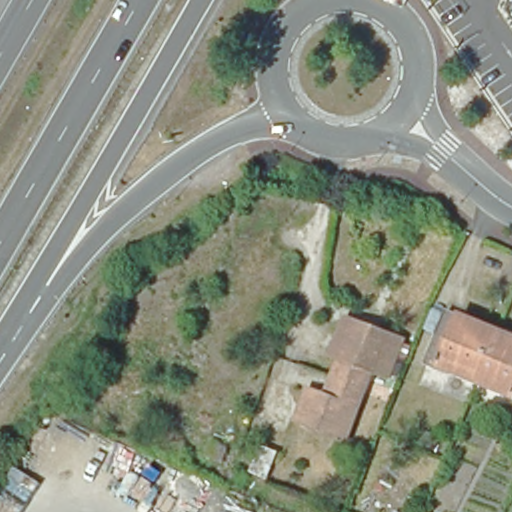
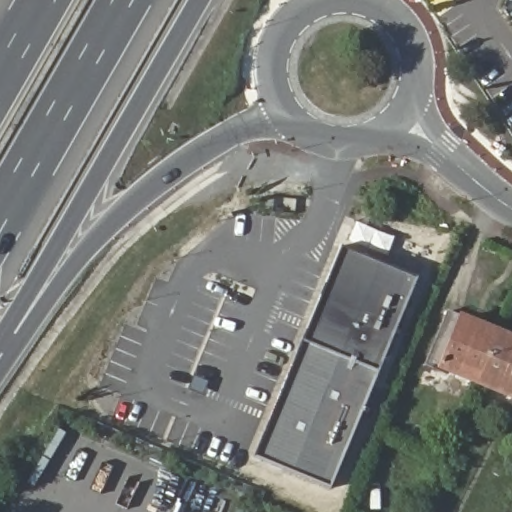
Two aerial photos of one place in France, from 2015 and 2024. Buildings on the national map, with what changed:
new [(331,487),(255,456),(304,340),(342,247),(417,279),(379,371),(331,487)]
unchanged [(450,311),(467,318),(481,324),(502,332),(486,369),(481,381),(431,361),(450,311)]
demolished [(348,322),(403,346),(390,378),(334,355),(348,322)]
unchanged [(512,335),(512,393),(481,381),(486,369),(502,332),(512,335)]
demolished [(374,379),(350,443),(298,423),(310,391),(326,397),(338,366),(374,379)]
demolished [(230,450),(223,465),(206,457),(213,442),(230,450)]
demolished [(41,476),(18,512),(0,512),(0,485),(16,460),(41,476)]

